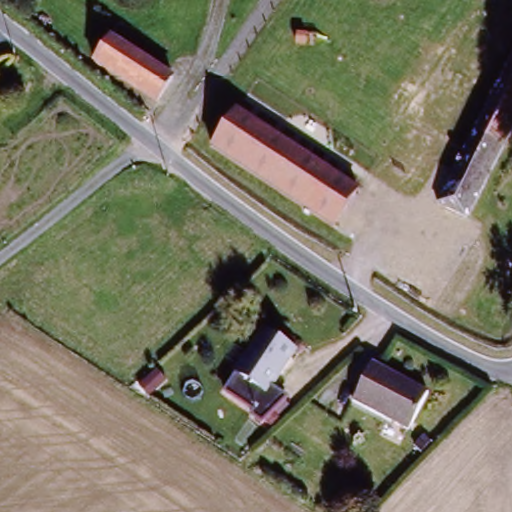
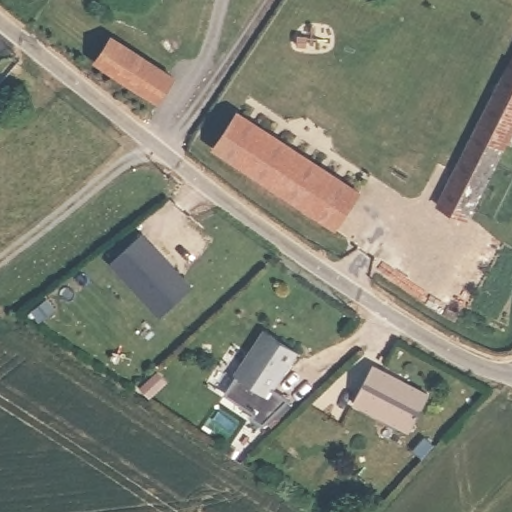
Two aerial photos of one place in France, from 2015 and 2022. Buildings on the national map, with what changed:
unchanged [(174,68),(160,95),(93,57),(108,31),(174,68)]
unchanged [(434,195),(512,52),(512,125),(465,212),(434,195)]
unchanged [(362,189),(340,224),(211,135),(232,102),(362,189)]
new [(108,265),(140,235),(192,290),(160,320),(108,265)]
unchanged [(297,349),(265,392),(234,369),(266,326),(297,349)]
unchanged [(427,399),(402,433),(349,395),(375,361),(427,399)]

